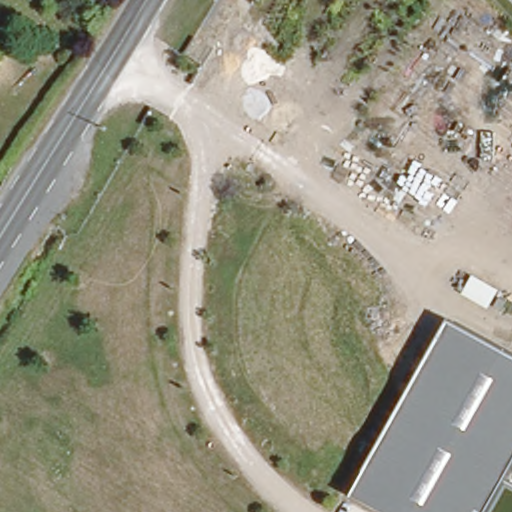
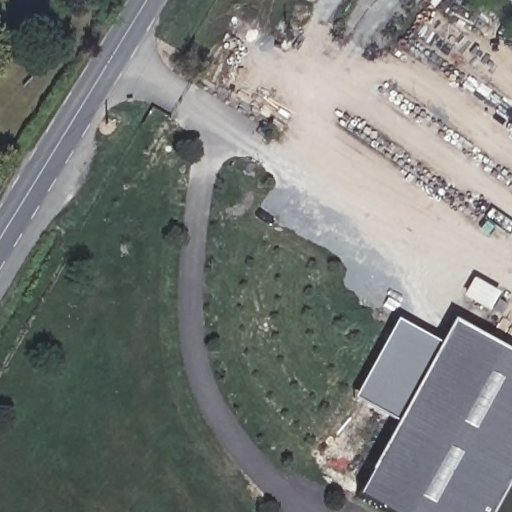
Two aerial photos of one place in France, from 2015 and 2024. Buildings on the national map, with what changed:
new [(353,400),(396,321),(442,345),(397,424),(353,400)]
unchanged [(512,483),(512,512),(383,512),(356,496),(455,322),(512,353),(512,477),(510,482),(512,483)]

